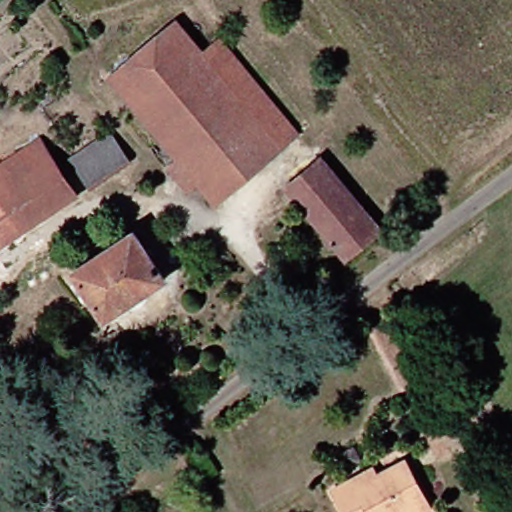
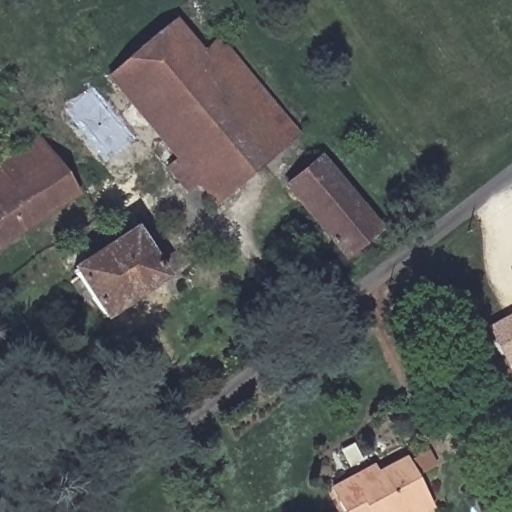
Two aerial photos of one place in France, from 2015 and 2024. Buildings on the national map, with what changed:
unchanged [(155,163),(165,153),(110,72),(179,24),(206,58),(235,40),(307,141),(272,165),(247,128),(166,185),(155,163)]
unchanged [(247,128),(272,165),(207,210),(191,189),(177,198),(166,185),(247,128)]
unchanged [(92,184),(75,156),(110,132),(129,160),(92,184)]
unchanged [(0,206),(0,162),(39,134),(83,195),(23,236),(0,206)]
unchanged [(342,263),(285,182),(331,151),(387,231),(342,263)]
unchanged [(0,253),(0,206),(23,236),(0,253)]
unchanged [(139,231),(172,278),(109,324),(74,274),(139,231)]
new [(512,270),(512,273),(511,270),(512,270)]
new [(512,314),(512,377),(484,328),(512,314)]
unchanged [(332,489),(353,478),(377,464),(383,474),(406,461),(431,509),(426,512),(343,512),(332,489)]

